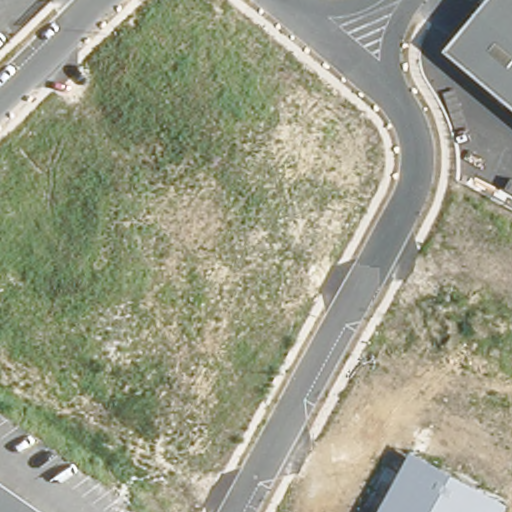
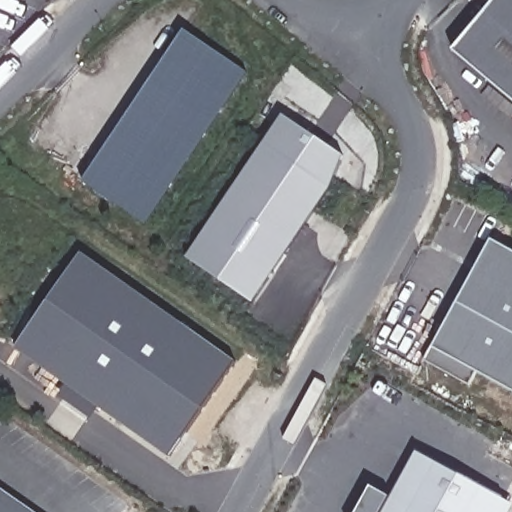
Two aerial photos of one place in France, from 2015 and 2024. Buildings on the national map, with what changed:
unchanged [(453,51),(500,0),(512,0),(512,100),(453,51)]
new [(181,24),(245,66),(142,218),(79,175),(181,24)]
new [(342,156),(331,187),(253,302),(186,257),(283,116),(342,156)]
new [(435,328),(432,327),(488,232),(512,245),(512,386),(473,364),(465,378),(419,353),(435,328)]
new [(80,247),(233,356),(166,450),(13,341),(80,247)]
unchanged [(511,512),(384,512),(417,451),(512,503),(512,511),(511,512)]
unchanged [(0,488),(35,512),(0,512),(0,488)]

